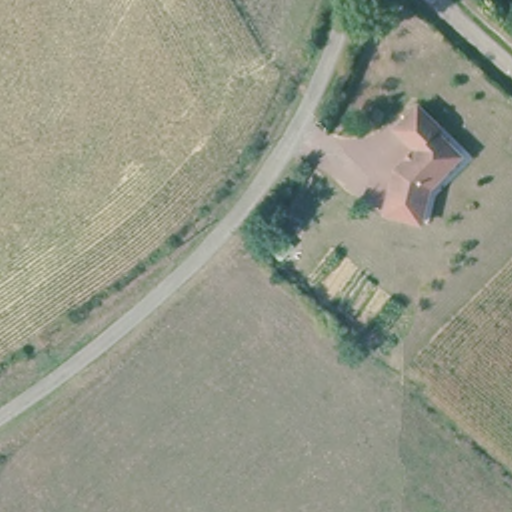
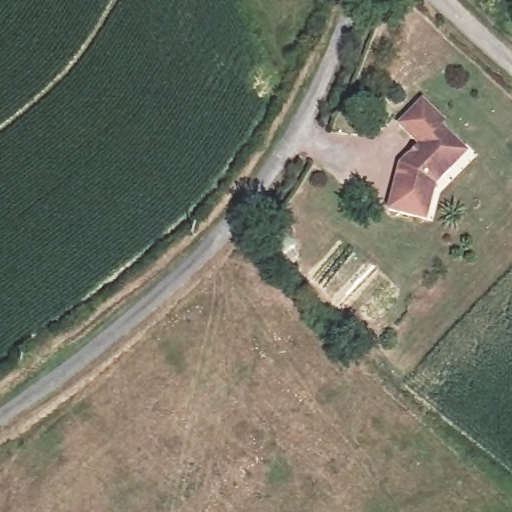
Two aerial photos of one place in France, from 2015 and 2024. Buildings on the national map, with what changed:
unchanged [(428,219),(389,210),(402,162),(421,145),(400,123),(422,102),(446,122),(443,127),(458,141),(468,151),(456,164),(436,184),(428,219)]

